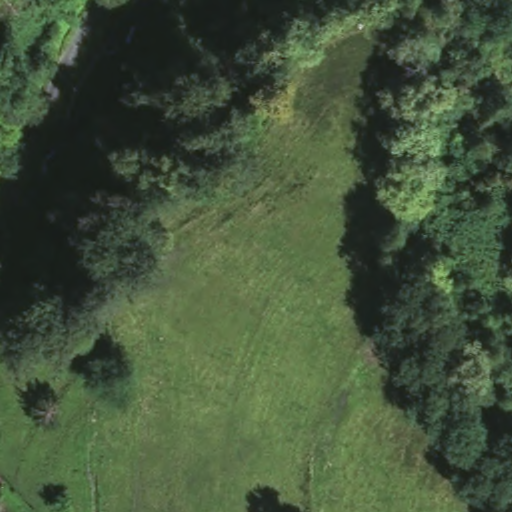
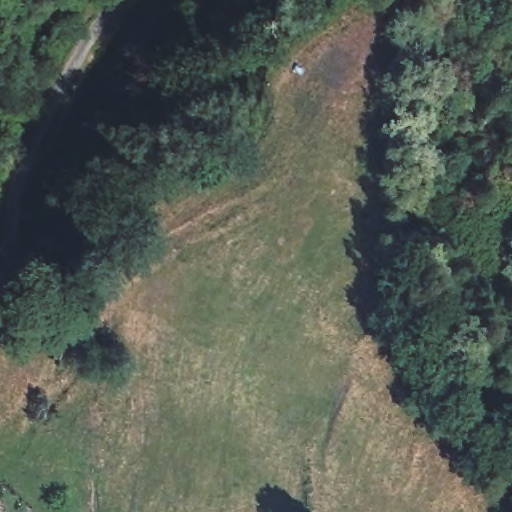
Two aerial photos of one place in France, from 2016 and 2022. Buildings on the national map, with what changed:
[]

